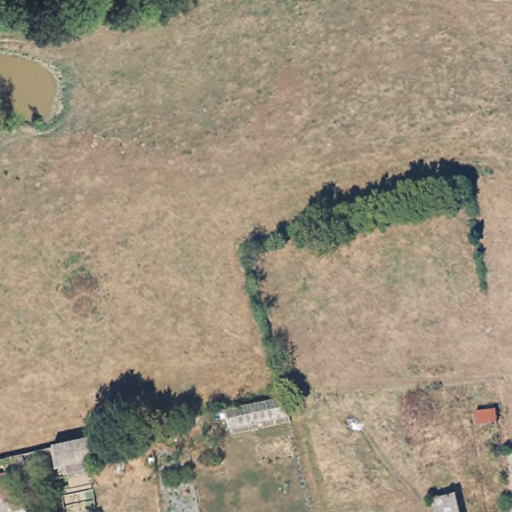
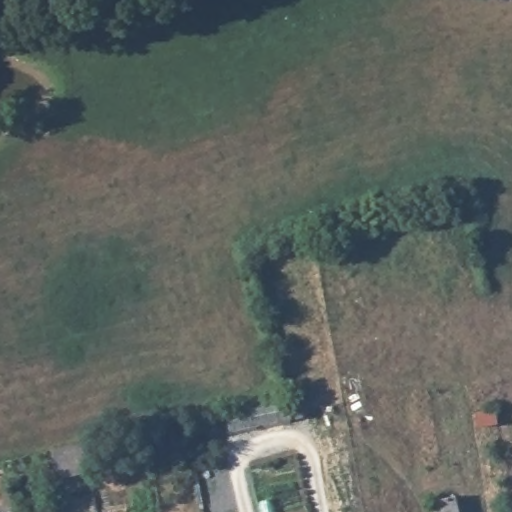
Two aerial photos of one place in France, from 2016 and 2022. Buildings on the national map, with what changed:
unchanged [(81,440),(86,462),(50,470),(46,448),(81,440)]
unchanged [(6,507),(20,507),(21,512),(0,512),(0,477),(4,476),(6,507)]
unchanged [(450,497),(455,512),(430,512),(429,504),(450,497)]

